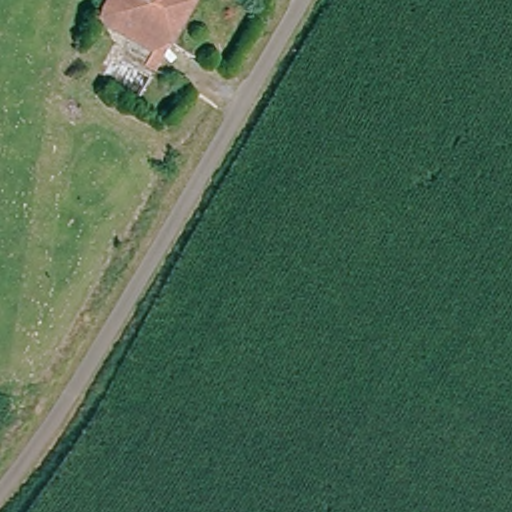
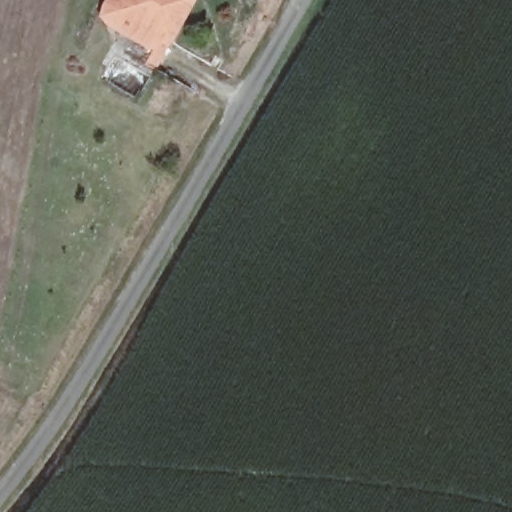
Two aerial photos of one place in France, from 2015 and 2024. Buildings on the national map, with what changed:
unchanged [(104,6),(107,0),(190,0),(170,40),(163,36),(150,59),(127,49),(133,37),(107,24),(103,17),(104,6)]

